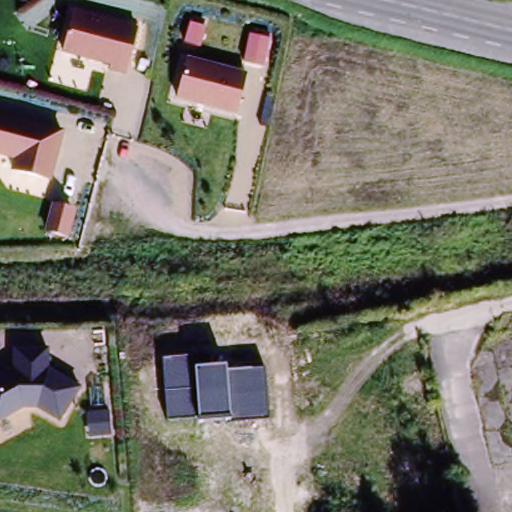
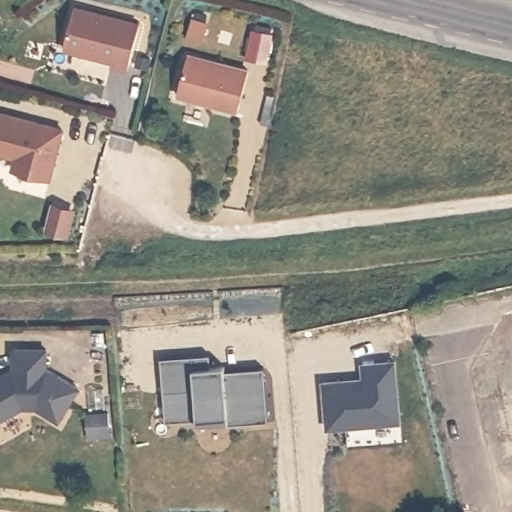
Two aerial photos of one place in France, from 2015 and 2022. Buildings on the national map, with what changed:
unchanged [(141,25),(127,75),(107,69),(108,65),(64,50),(72,9),(141,25)]
unchanged [(248,71),(238,112),(177,96),(187,53),(248,71)]
unchanged [(65,130),(53,181),(12,172),(14,164),(0,160),(0,112),(65,130)]
unchanged [(11,368),(11,351),(49,350),(49,370),(82,391),(60,426),(37,412),(21,411),(0,424),(0,374),(11,368)]
unchanged [(268,417),(227,420),(196,422),(196,417),(167,421),(162,360),(191,358),(192,368),(225,366),(226,373),(265,369),(268,417)]
new [(367,383),(366,367),(397,365),(400,427),(328,430),(326,385),(367,383)]

